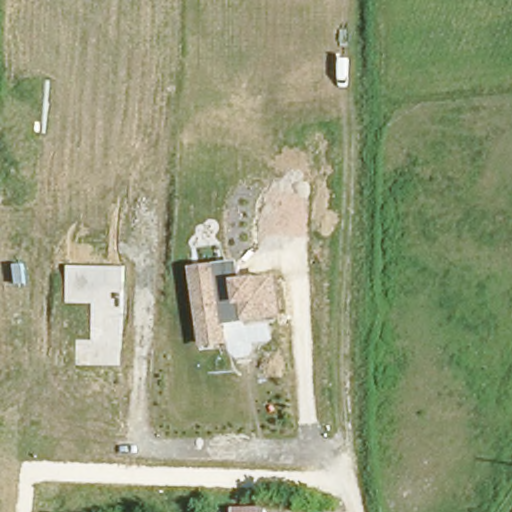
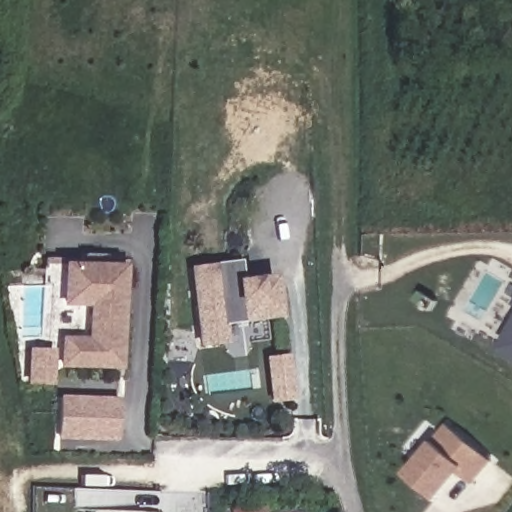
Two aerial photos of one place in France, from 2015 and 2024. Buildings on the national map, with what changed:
unchanged [(227,325),(229,343),(199,346),(188,265),(239,260),(242,275),(275,271),(282,319),(227,325)]
new [(86,306),(60,305),(60,261),(124,262),(120,368),(58,367),(59,335),(85,335),(86,306)]
new [(512,299),(512,305),(509,303),(512,299)]
new [(512,315),(512,357),(494,347),(512,315)]
new [(51,350),(51,382),(24,381),(22,348),(51,350)]
new [(117,396),(113,440),(56,439),(56,396),(117,396)]
new [(427,441),(431,443),(444,425),(488,460),(467,485),(455,475),(435,501),(398,472),(427,441)]
unchanged [(269,512),(230,512),(229,510),(257,510),(269,510),(269,512)]

